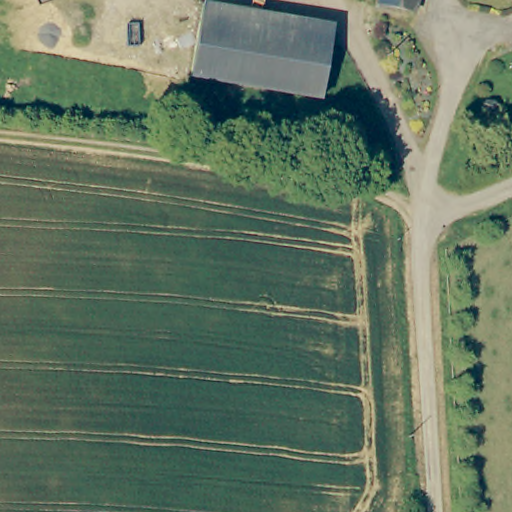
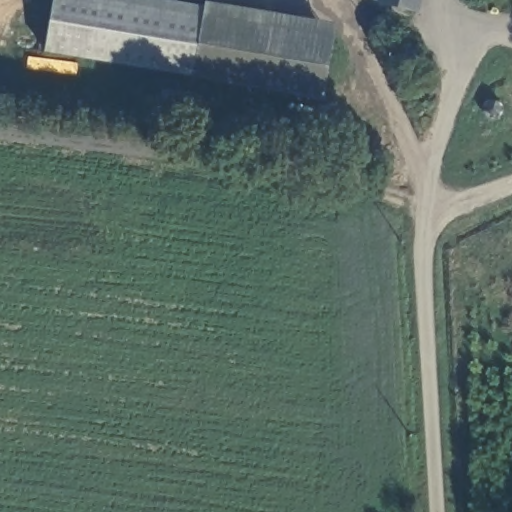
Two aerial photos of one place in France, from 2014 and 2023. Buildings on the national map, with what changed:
new [(54,0),(159,0),(203,7),(192,76),(45,52),(54,0)]
unchanged [(418,0),(416,12),(379,3),(379,0),(418,0)]
unchanged [(267,27),(331,38),(319,98),(192,76),(204,3),(269,15),(267,27)]
unchanged [(495,98),(498,100),(499,101),(501,103),(502,107),(501,110),(501,112),(499,113),(497,115),(493,116),(489,116),(486,114),(485,112),(484,107),(484,103),(486,101),(490,99),(492,98),(495,98)]

